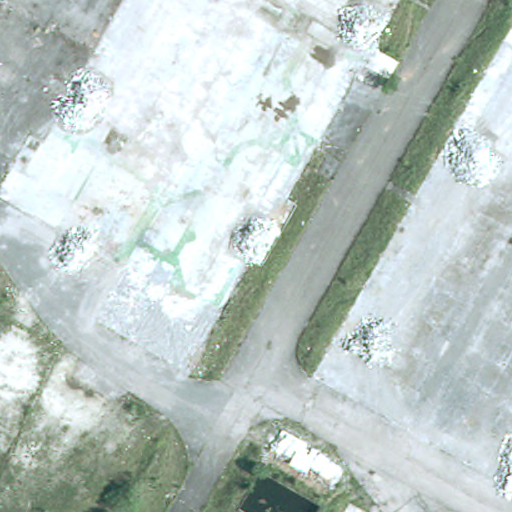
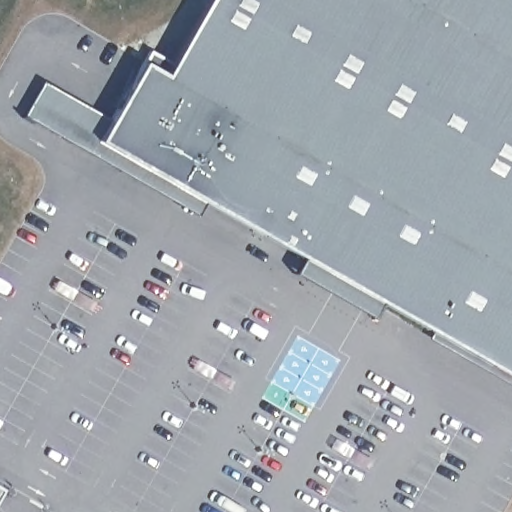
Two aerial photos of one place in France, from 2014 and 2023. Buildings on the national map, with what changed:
demolished [(367,64),(290,199),(300,204),(265,265),(257,260),(191,373),(100,319),(115,294),(130,270),(104,254),(12,202),(33,166),(20,158),(35,134),(47,141),(99,49),(57,25),(55,28),(8,0),(404,0),(377,47),(367,64)]
new [(204,202),(97,140),(110,119),(144,60),(165,72),(206,0),(512,0),(512,378),(204,202)]
demolished [(312,376),(512,23),(512,489),(312,376)]
new [(110,119),(97,140),(204,202),(197,215),(21,116),(42,80),(110,119)]
demolished [(329,490),(265,454),(282,426),(345,462),(329,490)]
new [(0,490),(0,486),(2,487),(0,490)]

